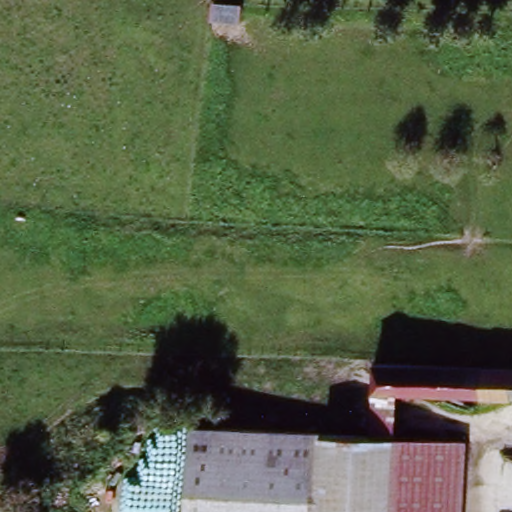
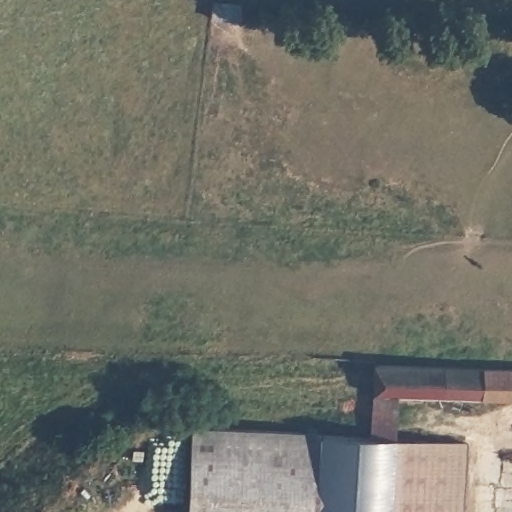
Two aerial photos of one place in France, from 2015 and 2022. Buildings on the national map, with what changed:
unchanged [(505,405),(387,399),(386,439),(365,437),(367,372),(506,377),(505,401),(505,405)]
unchanged [(506,377),(512,377),(512,401),(505,401),(506,377)]
unchanged [(312,436),(309,512),(182,512),(185,431),(312,436)]
unchanged [(383,512),(309,512),(312,436),(365,437),(386,439),(383,512)]
unchanged [(383,512),(386,439),(457,442),(453,512),(383,512)]

